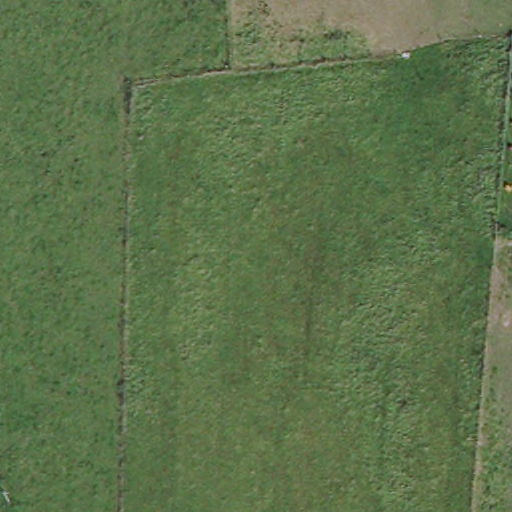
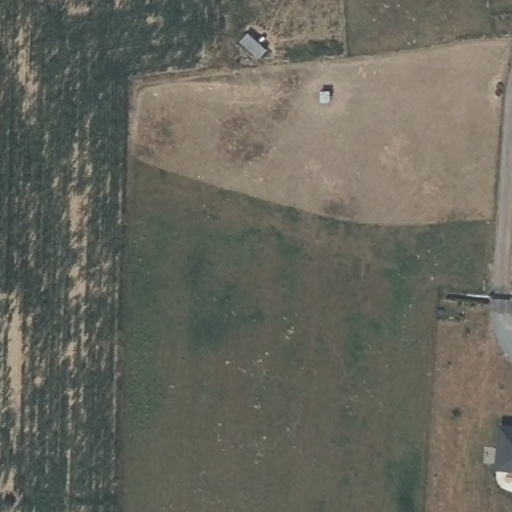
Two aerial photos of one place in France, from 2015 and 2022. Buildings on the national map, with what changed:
new [(500,428),(512,429),(512,472),(497,471),(500,428)]

